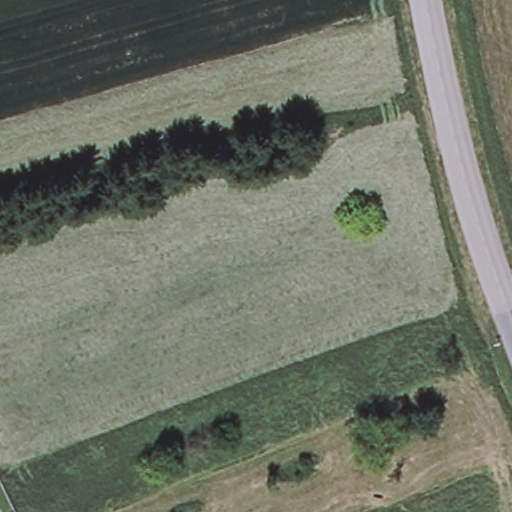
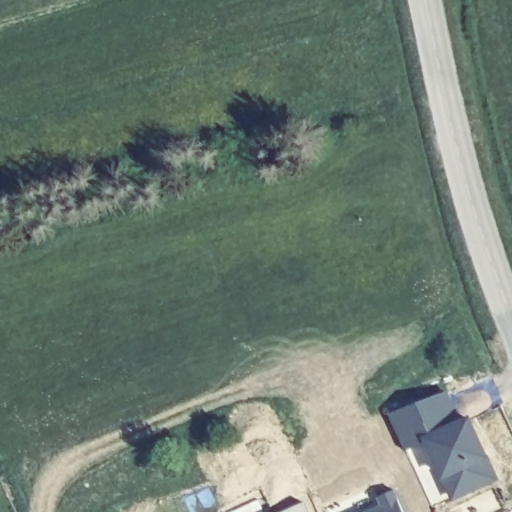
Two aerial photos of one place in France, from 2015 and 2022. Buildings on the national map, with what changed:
new [(447,391),(459,419),(469,417),(498,481),(451,501),(443,481),(439,482),(424,444),(404,451),(388,415),(447,391)]
new [(379,507),(376,499),(395,491),(404,512),(367,512),(379,507)]
new [(304,504),(308,512),(285,512),(304,504)]

